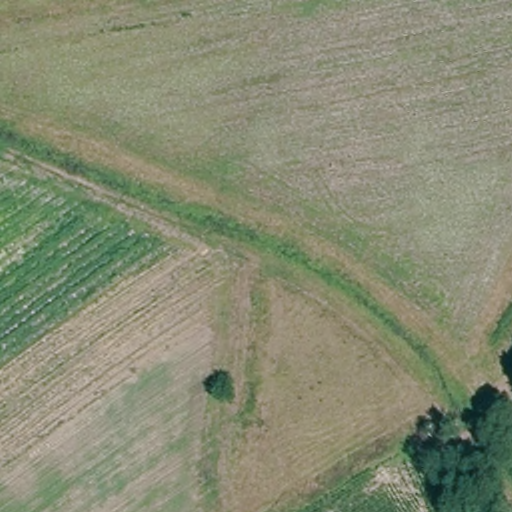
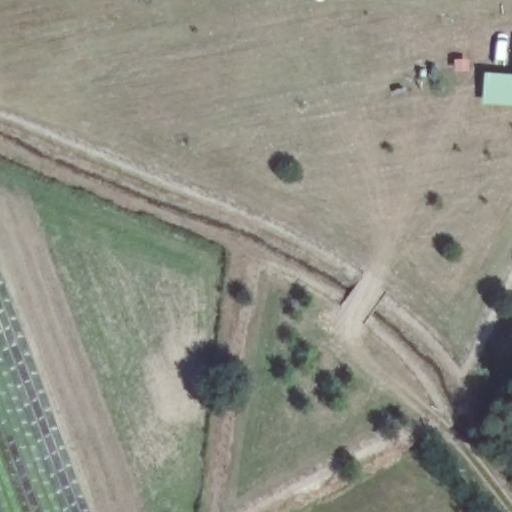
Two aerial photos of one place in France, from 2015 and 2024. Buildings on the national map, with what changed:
new [(484,72),(512,75),(512,107),(481,105),(484,72)]

